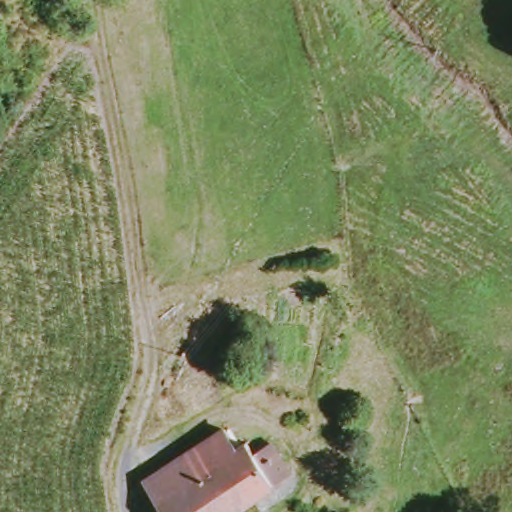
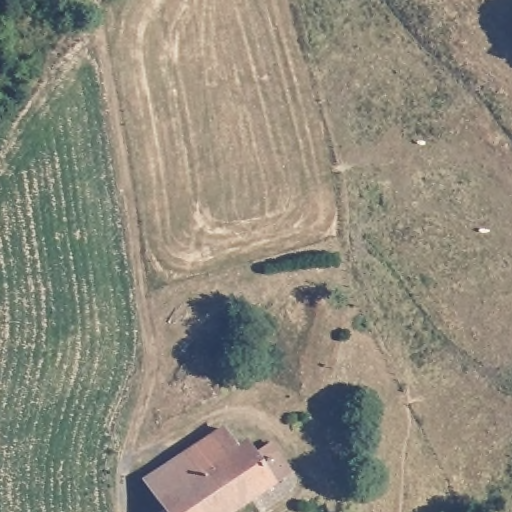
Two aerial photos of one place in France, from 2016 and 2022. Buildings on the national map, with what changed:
unchanged [(145,485),(225,431),(237,450),(247,443),(255,456),(272,445),(293,475),(236,512),(161,512),(145,485)]

